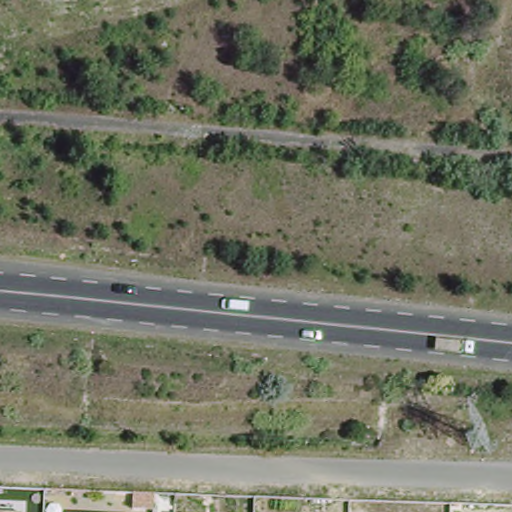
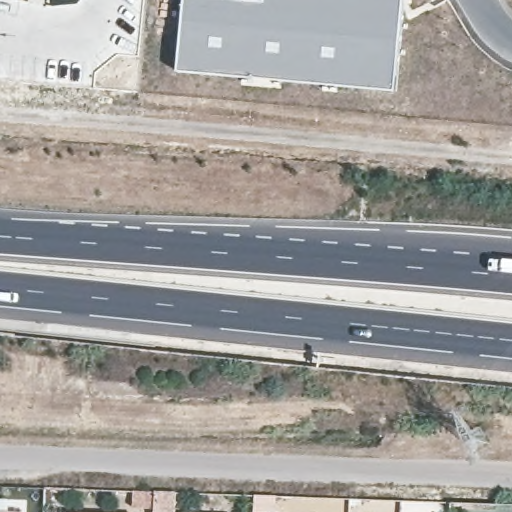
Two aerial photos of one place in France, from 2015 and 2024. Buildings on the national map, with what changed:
new [(395,91),(178,71),(186,0),(245,0),(265,2),(265,0),(403,0),(395,91)]

